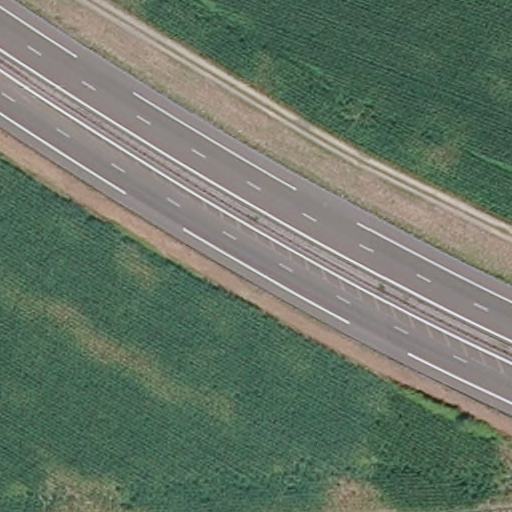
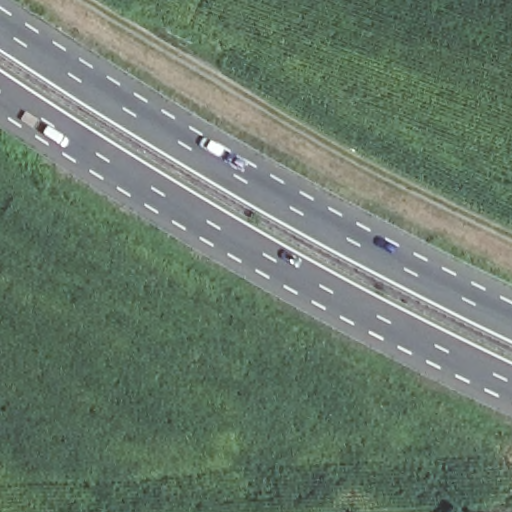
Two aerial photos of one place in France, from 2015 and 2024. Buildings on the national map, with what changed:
[]

